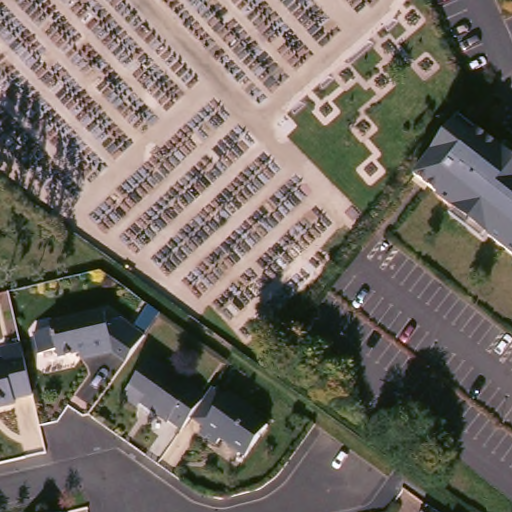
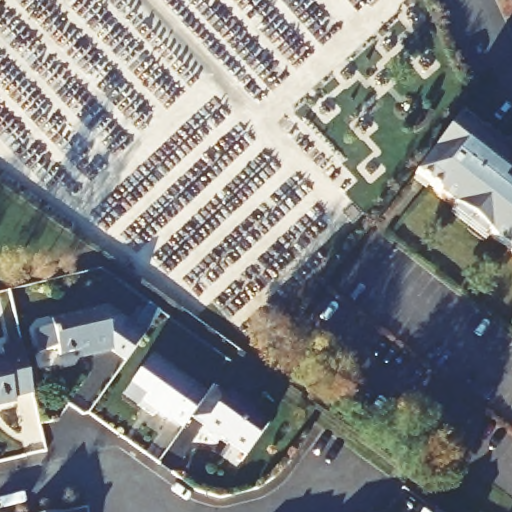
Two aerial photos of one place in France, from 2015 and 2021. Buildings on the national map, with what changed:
unchanged [(481,127),(512,151),(512,247),(442,192),(443,192),(419,172),(455,126),(460,120),(476,134),(481,127)]
unchanged [(94,356),(91,351),(61,357),(59,350),(41,354),(36,332),(55,327),(55,322),(107,310),(110,321),(125,317),(150,336),(145,341),(130,364),(115,351),(94,356)]
unchanged [(17,395),(19,402),(1,406),(0,402),(0,358),(5,357),(2,348),(25,343),(35,390),(17,395)]
unchanged [(175,426),(150,408),(145,415),(128,402),(157,361),(214,402),(199,423),(190,434),(176,423),(175,426)]
unchanged [(237,397),(265,418),(263,420),(277,431),(253,463),(227,445),(224,449),(207,437),(210,432),(199,423),(214,402),(220,393),(232,402),(237,397)]
unchanged [(69,510),(69,512),(58,512),(69,510)]

